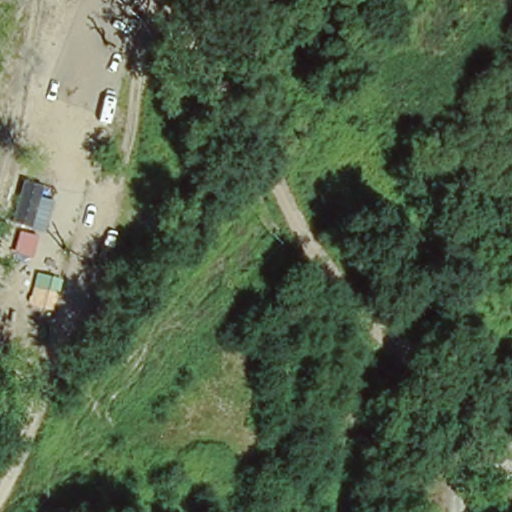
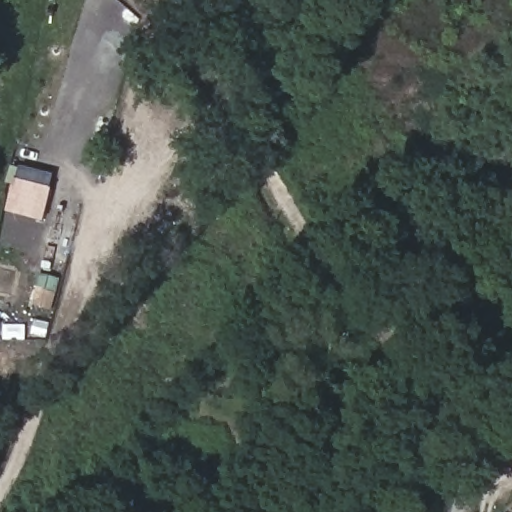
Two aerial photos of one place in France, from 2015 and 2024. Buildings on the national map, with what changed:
new [(44,220),(11,211),(24,166),(55,175),(44,220)]

